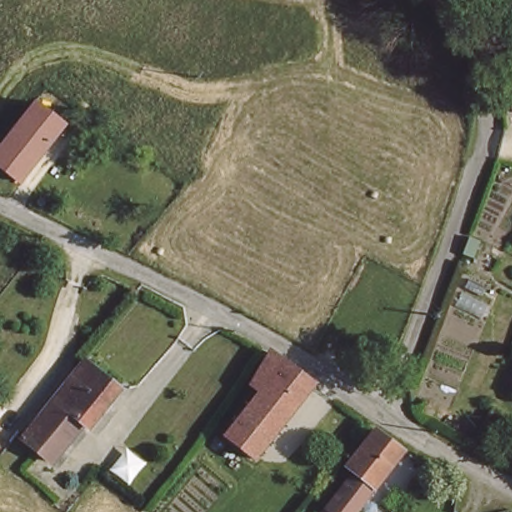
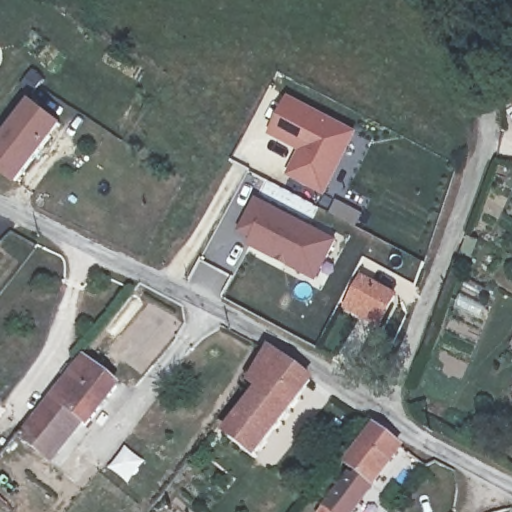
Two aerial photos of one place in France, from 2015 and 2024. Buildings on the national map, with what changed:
demolished [(0,101),(0,72),(15,82),(0,101)]
new [(285,175),(296,151),(268,134),(290,95),(360,132),(325,196),(285,175)]
unchanged [(0,167),(0,142),(34,99),(65,126),(20,185),(0,167)]
new [(256,197),(337,240),(316,280),(247,245),(250,239),(237,231),(256,197)]
new [(378,325),(343,307),(361,273),(397,292),(378,325)]
unchanged [(308,378),(270,431),(250,457),(225,442),(262,390),(248,379),(265,353),(308,378)]
unchanged [(80,355),(121,381),(93,422),(85,418),(58,451),(52,460),(17,437),(22,430),(80,355)]
unchanged [(407,441),(358,512),(325,512),(352,470),(346,465),(377,425),(407,441)]

